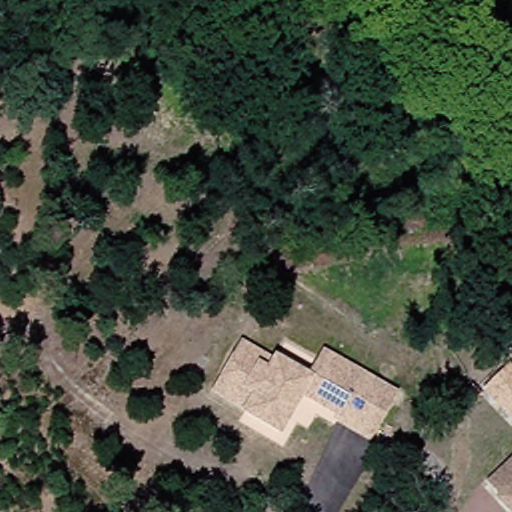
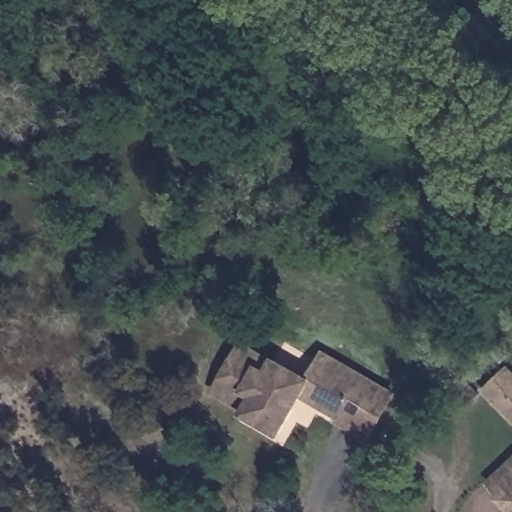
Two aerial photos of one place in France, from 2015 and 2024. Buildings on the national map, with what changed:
unchanged [(237,340),(305,373),(321,346),(400,390),(366,440),(331,422),(336,414),(299,398),(280,434),(208,393),(237,340)]
unchanged [(500,361),(512,374),(512,411),(503,420),(474,386),(500,361)]
unchanged [(500,493),(485,475),(512,452),(512,512),(503,512),(493,500),(500,493)]

